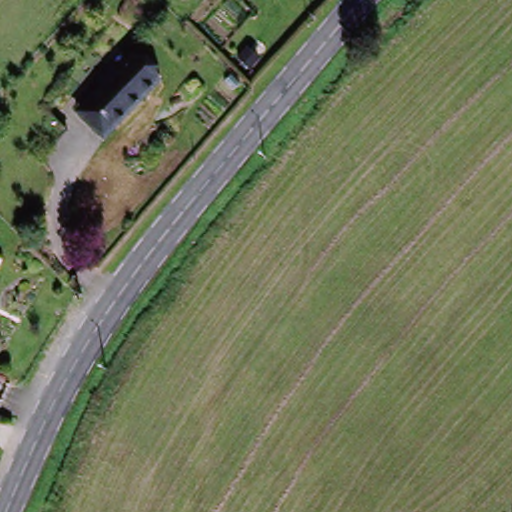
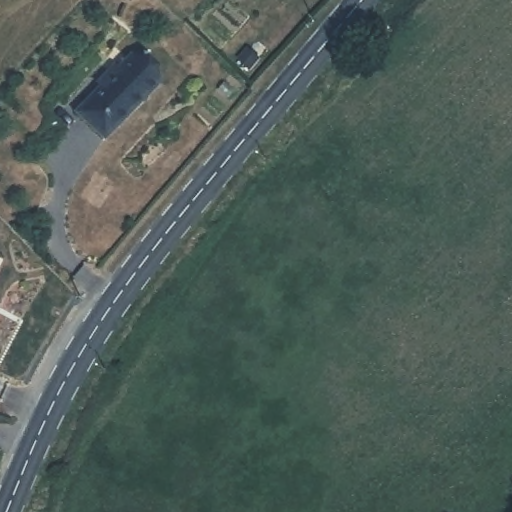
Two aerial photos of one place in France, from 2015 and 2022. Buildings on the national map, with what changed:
unchanged [(87,103),(101,88),(97,84),(114,65),(118,69),(131,54),(161,79),(119,129),(111,138),(80,111),(87,103)]

